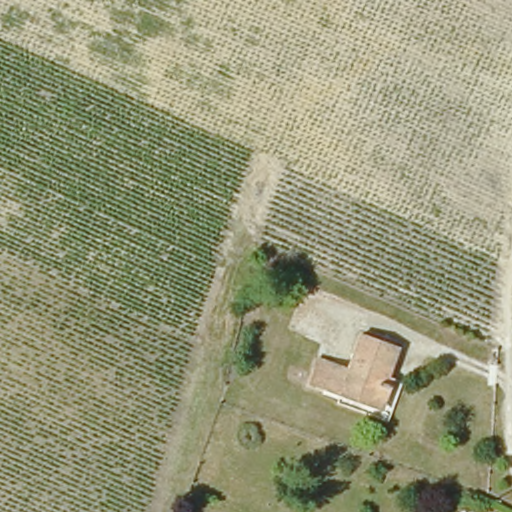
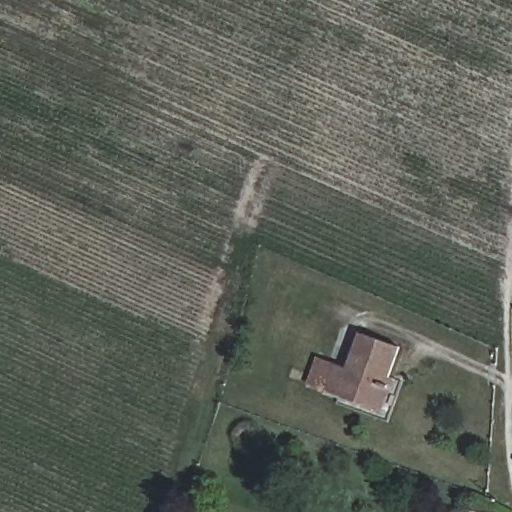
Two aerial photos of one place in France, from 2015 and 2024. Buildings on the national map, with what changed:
unchanged [(346,370),(360,333),(399,349),(390,378),(394,381),(381,416),(312,386),(324,362),(346,370)]

